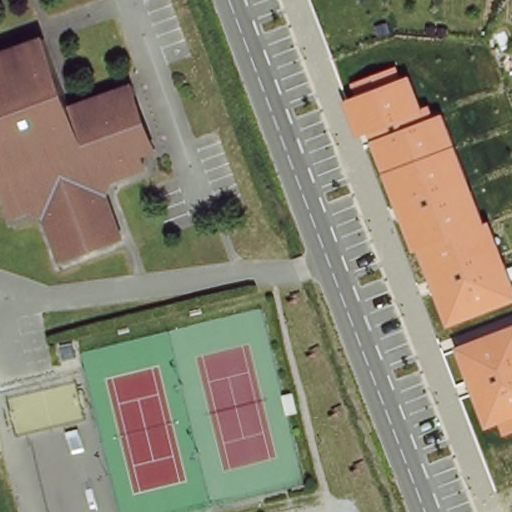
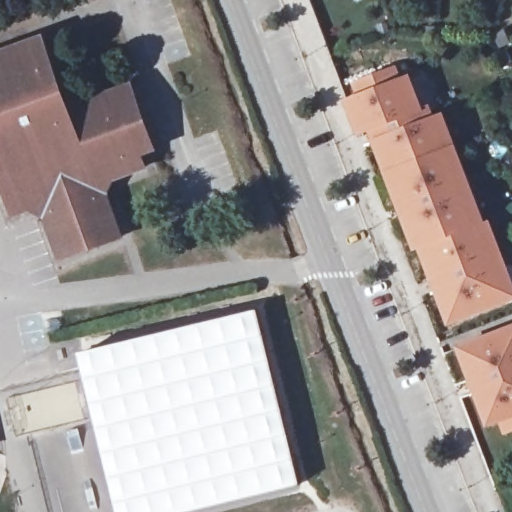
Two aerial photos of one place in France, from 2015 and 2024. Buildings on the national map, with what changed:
unchanged [(109,192),(125,236),(65,259),(48,216),(34,210),(17,216),(8,192),(0,195),(0,54),(45,37),(71,107),(134,84),(138,94),(158,147),(144,153),(148,165),(115,177),(109,192)]
unchanged [(398,65),(403,76),(409,74),(422,104),(427,102),(433,114),(442,111),(484,222),(490,220),(512,281),(512,300),(447,326),(418,249),(413,251),(367,132),(358,135),(346,99),(356,95),(351,84),(398,65)]
new [(304,482),(189,512),(118,512),(79,353),(261,309),(304,482)]
unchanged [(512,327),(512,432),(506,435),(503,422),(486,428),(457,347),(512,327)]

